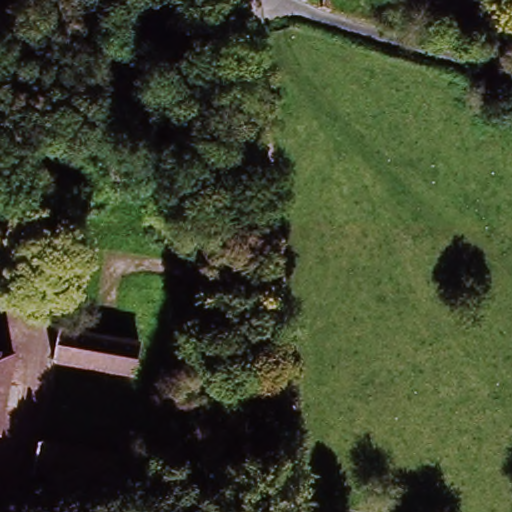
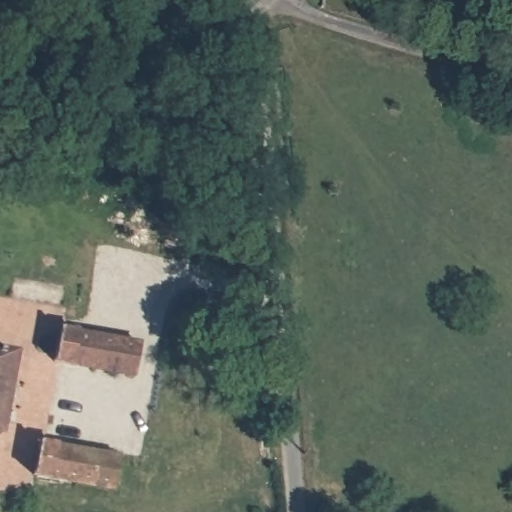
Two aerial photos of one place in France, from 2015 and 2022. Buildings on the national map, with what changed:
unchanged [(61,370),(65,337),(141,344),(137,377),(61,370)]
unchanged [(0,431),(0,352),(15,355),(0,431)]
unchanged [(30,450),(110,461),(105,491),(25,481),(30,450)]

